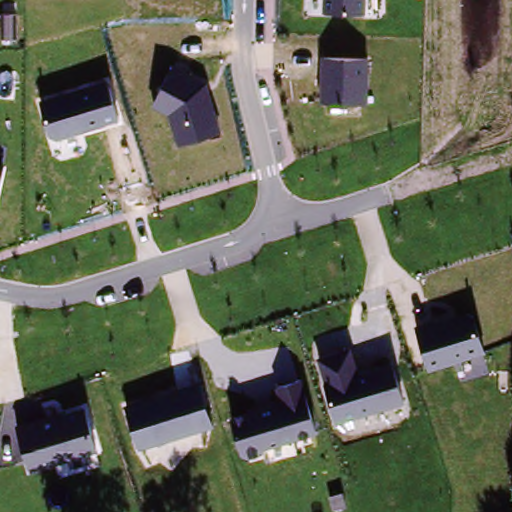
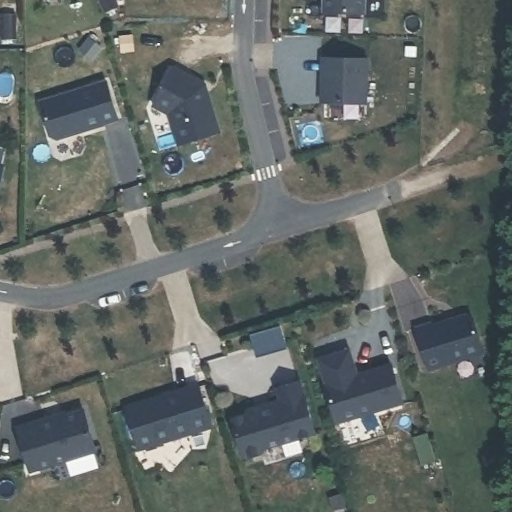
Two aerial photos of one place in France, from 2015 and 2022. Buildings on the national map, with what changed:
unchanged [(365,0),(365,13),(322,12),(323,0),(365,0)]
unchanged [(323,57),(369,59),(368,104),(321,102),(323,57)]
unchanged [(210,90),(223,133),(178,145),(170,114),(154,104),(171,68),(210,90)]
unchanged [(109,81),(119,120),(58,139),(51,135),(41,99),(109,81)]
unchanged [(0,185),(0,165),(4,166),(0,185)]
unchanged [(484,355),(429,372),(416,328),(472,311),(484,355)]
unchanged [(317,358),(352,349),(358,373),(395,363),(406,404),(335,424),(317,358)]
unchanged [(278,402),(274,388),(300,381),(317,434),(264,449),(265,453),(244,459),(231,416),(278,402)]
unchanged [(162,397),(163,405),(202,394),(212,428),(139,448),(126,407),(162,397)]
unchanged [(86,408),(97,451),(89,454),(91,463),(73,467),(71,462),(30,473),(19,427),(86,408)]

